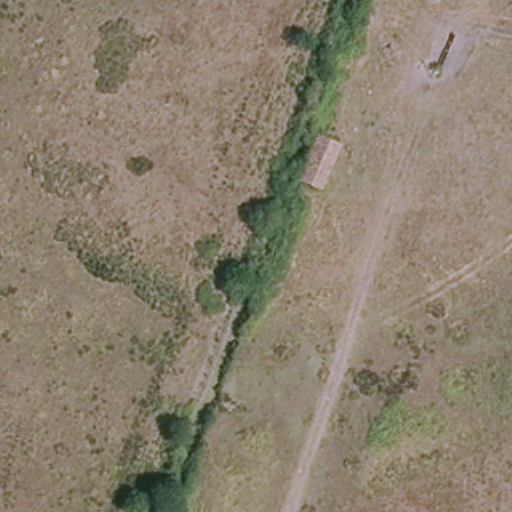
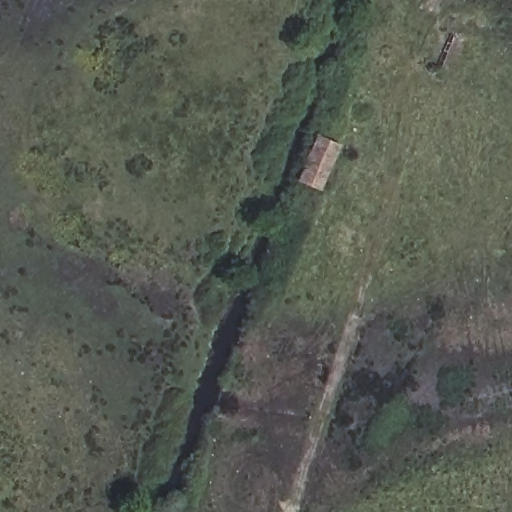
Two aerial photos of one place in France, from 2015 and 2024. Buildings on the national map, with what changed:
unchanged [(298,181),(316,134),(340,143),(322,191),(298,181)]

